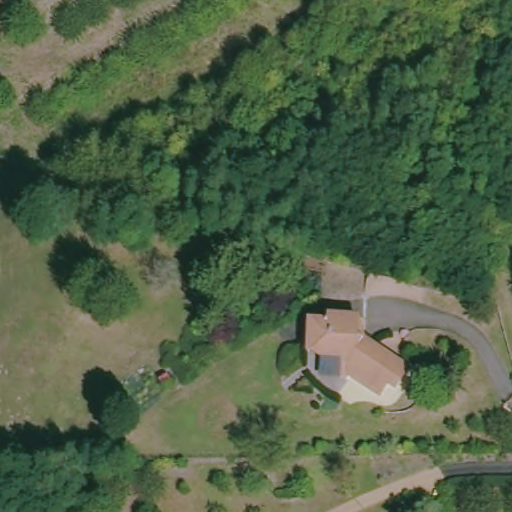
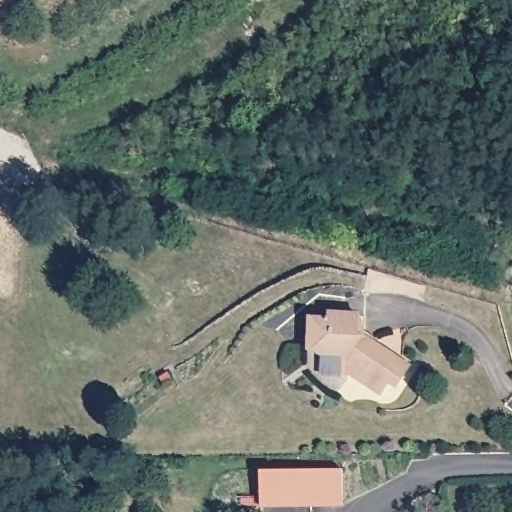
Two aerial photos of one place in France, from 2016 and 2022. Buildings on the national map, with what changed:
unchanged [(326,360),(315,348),(305,347),(305,325),(327,325),(327,319),(358,319),(358,336),(407,369),(394,389),(387,384),(379,396),(345,374),(325,376),(326,360)]
new [(265,506),(264,470),(346,467),(347,502),(265,506)]

